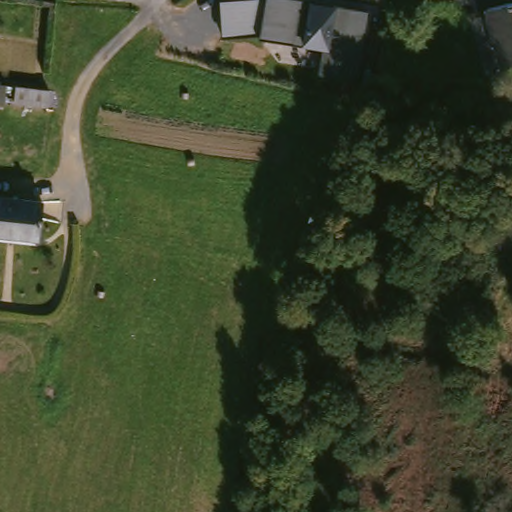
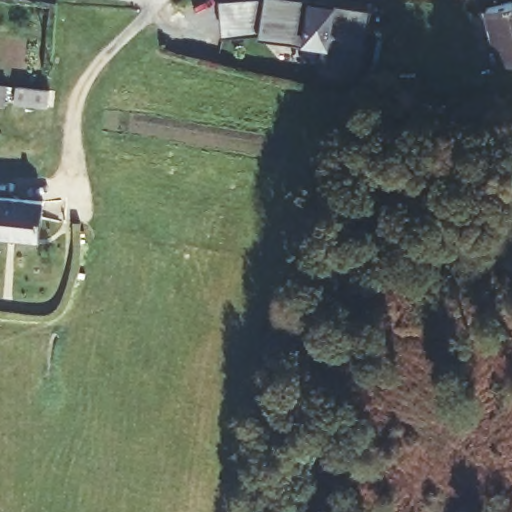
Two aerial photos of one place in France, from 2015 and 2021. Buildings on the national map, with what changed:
unchanged [(265,0),(309,0),(372,10),(361,81),(319,74),(324,50),(259,40),(265,0)]
unchanged [(506,60),(494,0),(496,0),(512,0),(512,59),(506,60)]
unchanged [(0,105),(0,84),(8,85),(4,105),(0,105)]
unchanged [(0,235),(0,198),(44,202),(39,240),(0,235)]

